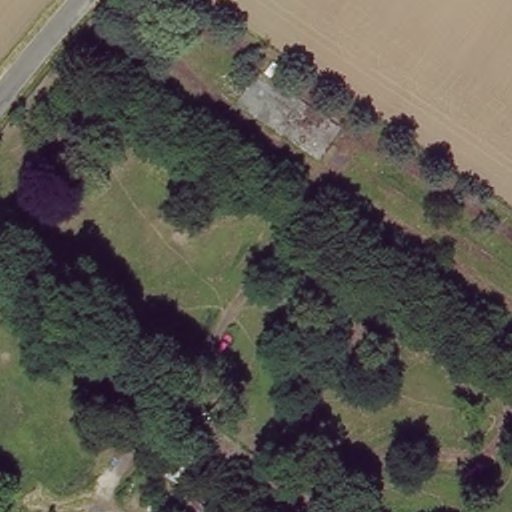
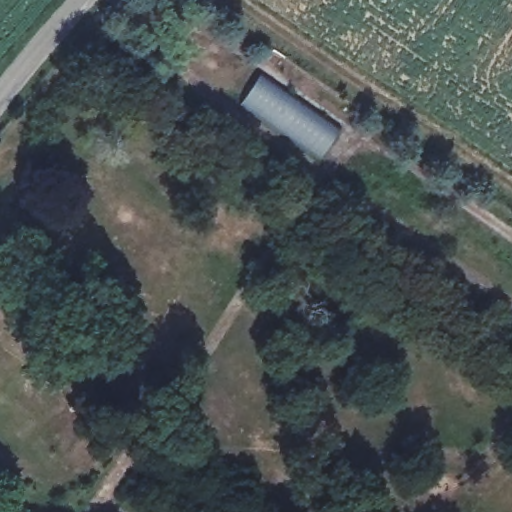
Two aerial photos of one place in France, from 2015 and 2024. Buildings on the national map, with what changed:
new [(344,127),(319,163),(238,109),(262,71),(344,127)]

